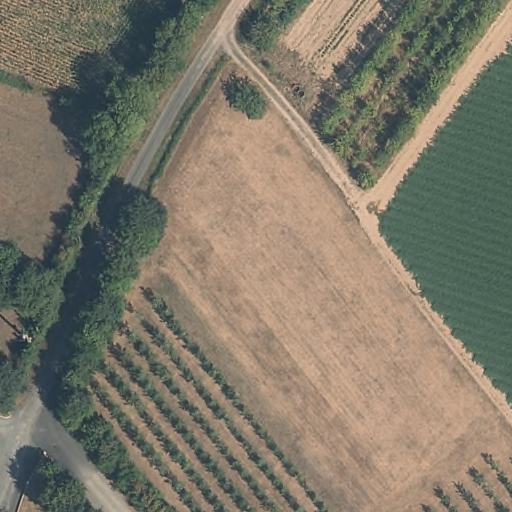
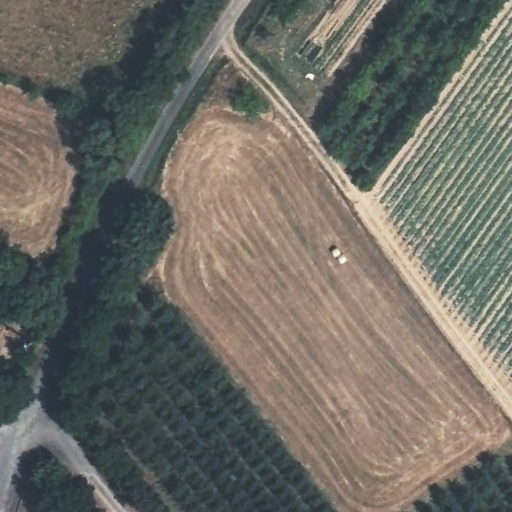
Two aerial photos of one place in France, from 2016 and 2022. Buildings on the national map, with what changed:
[]

